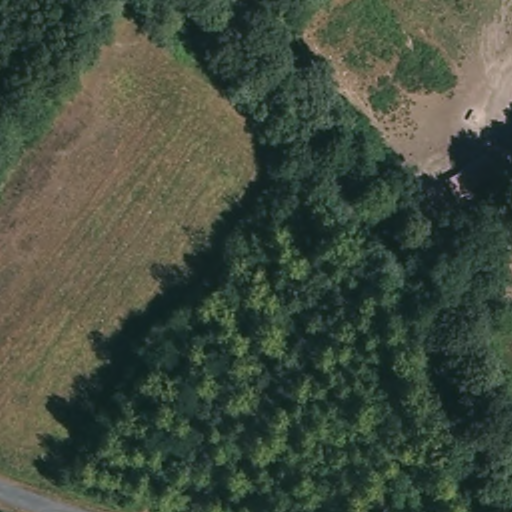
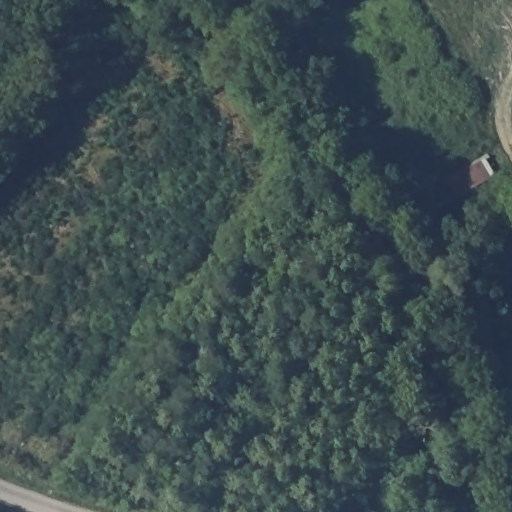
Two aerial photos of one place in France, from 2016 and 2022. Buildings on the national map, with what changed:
unchanged [(453,200),(443,183),(488,156),(498,174),(453,200)]

